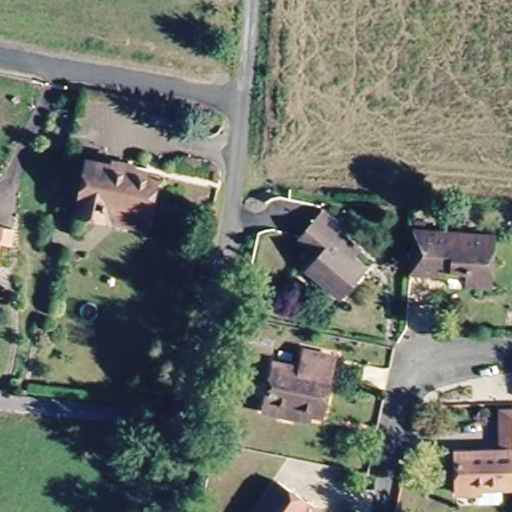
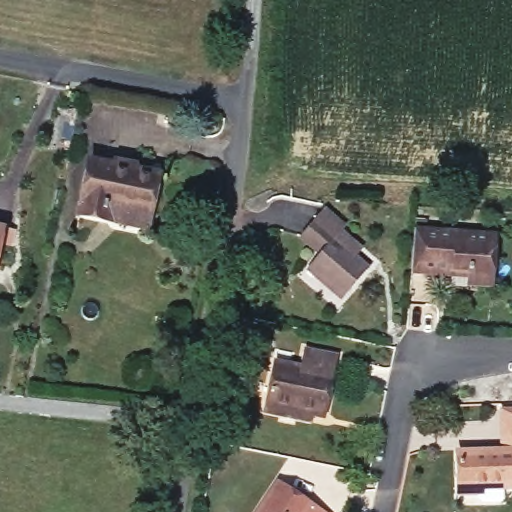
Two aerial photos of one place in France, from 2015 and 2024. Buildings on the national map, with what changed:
unchanged [(98,218),(73,212),(85,159),(161,175),(152,211),(148,229),(98,218)]
unchanged [(349,263),(362,276),(339,301),(306,271),(320,257),(297,234),(322,208),(344,228),(336,237),(346,246),(356,256),(349,263)]
unchanged [(409,276),(413,227),(498,234),(493,286),(468,284),(469,281),(444,279),(409,276)]
unchanged [(263,406),(266,396),(277,355),(304,362),(309,345),(337,352),(322,412),(309,408),(306,417),(263,406)]
unchanged [(502,499),(499,501),(479,501),(476,499),(476,491),(457,491),(457,451),(500,452),(500,434),(500,415),(500,407),(512,407),(512,485),(502,485),(502,499)]
unchanged [(326,512),(259,512),(279,481),(326,512)]

